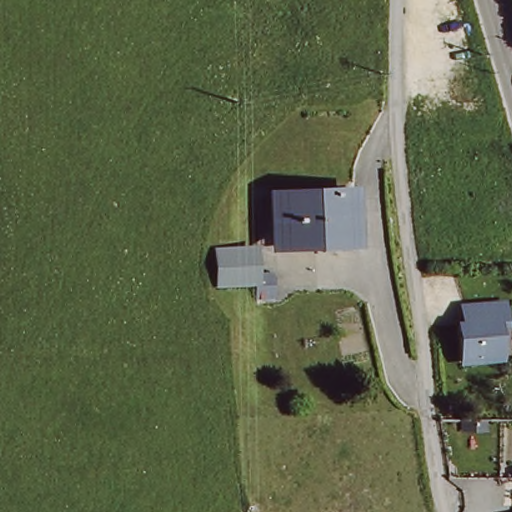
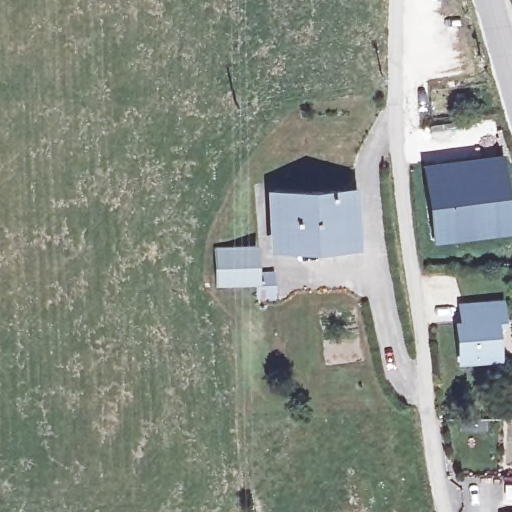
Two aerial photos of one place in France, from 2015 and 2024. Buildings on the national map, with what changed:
new [(512,217),(512,230),(432,242),(422,163),(502,151),(512,217)]
unchanged [(277,241),(276,194),(351,194),(352,249),(326,249),(326,241),(277,241)]
unchanged [(251,247),(252,274),(265,274),(266,297),(252,297),(252,276),(214,276),(213,247),(251,247)]
unchanged [(466,363),(462,325),(469,325),(466,304),(505,301),(507,321),(500,323),(503,361),(466,363)]

